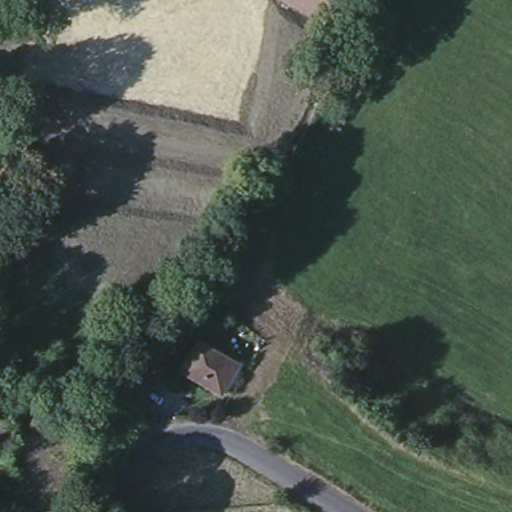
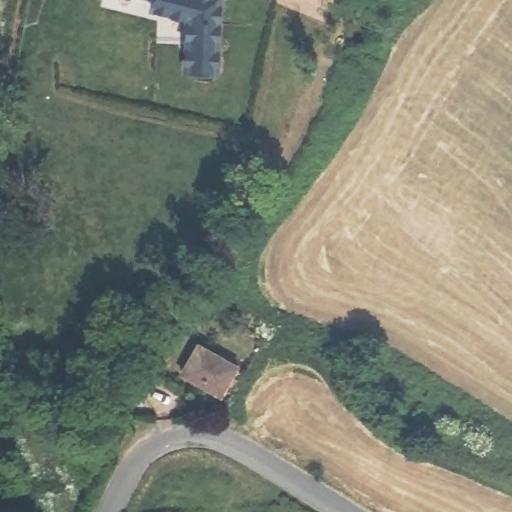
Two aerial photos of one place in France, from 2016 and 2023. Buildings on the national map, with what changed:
new [(225,71),(185,68),(186,12),(154,5),(156,0),(227,0),(225,71)]
unchanged [(238,366),(221,395),(181,373),(198,344),(238,366)]

